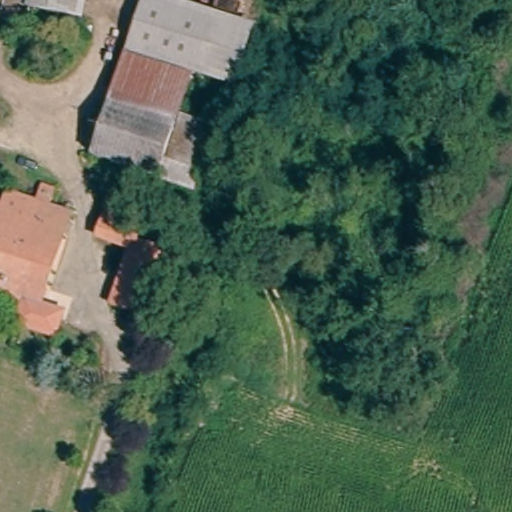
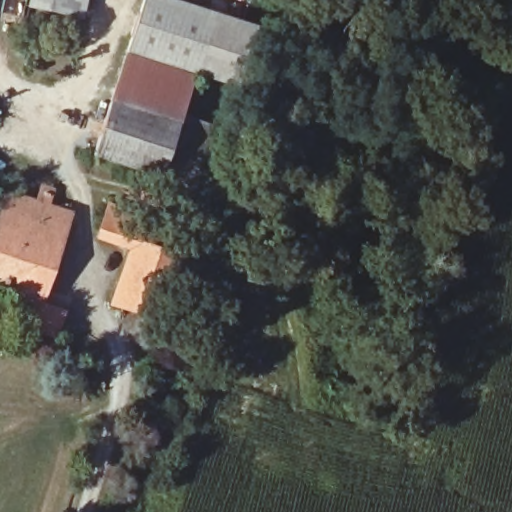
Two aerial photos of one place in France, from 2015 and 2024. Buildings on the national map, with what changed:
unchanged [(39,7),(41,0),(86,0),(82,17),(39,7)]
unchanged [(237,92),(195,80),(184,109),(180,122),(111,96),(126,50),(140,11),(143,0),(175,0),(256,31),(237,92)]
unchanged [(180,122),(184,109),(225,124),(198,191),(92,152),(111,96),(180,122)]
unchanged [(41,295),(66,305),(61,321),(25,308),(30,292),(0,282),(0,218),(15,173),(77,194),(41,295)]
unchanged [(103,231),(113,200),(149,212),(140,242),(103,231)]
unchanged [(155,318),(120,306),(140,242),(177,254),(155,318)]

